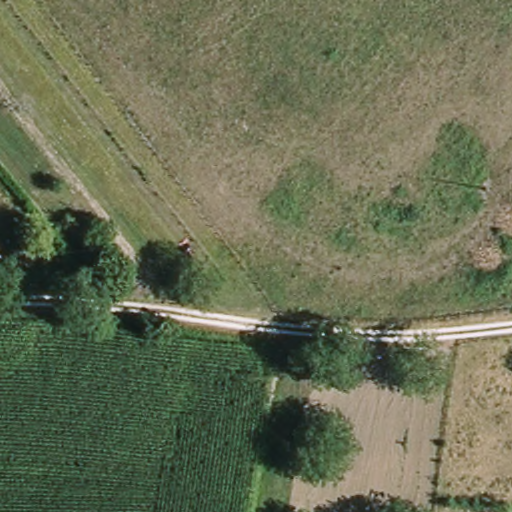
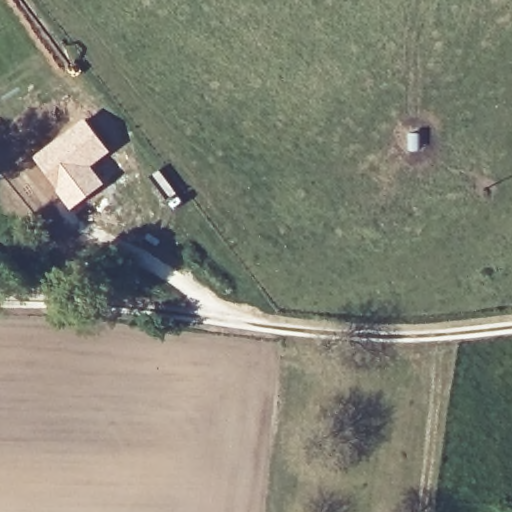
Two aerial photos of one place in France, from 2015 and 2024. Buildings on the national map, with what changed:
new [(83,116),(110,150),(91,166),(105,183),(70,210),(31,156),(83,116)]

